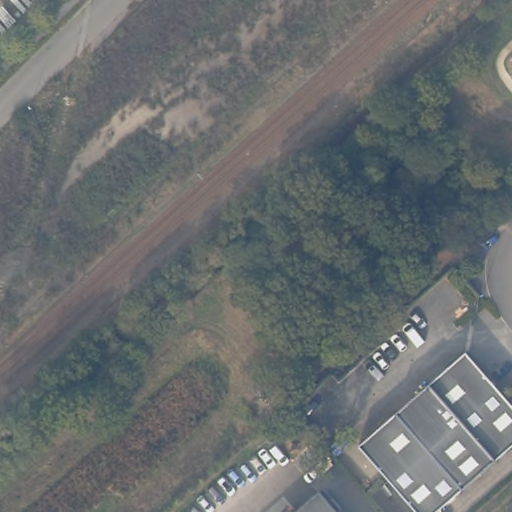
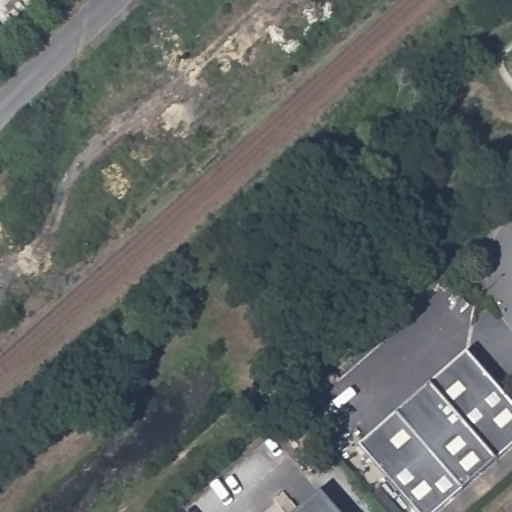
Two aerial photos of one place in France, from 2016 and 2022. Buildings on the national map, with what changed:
unchanged [(512,406),(512,445),(435,512),(415,512),(357,445),(465,352),(512,406)]
unchanged [(295,512),(318,491),(338,512),(295,512)]

